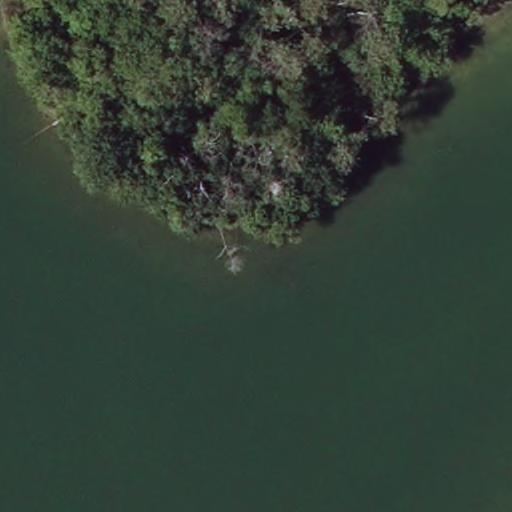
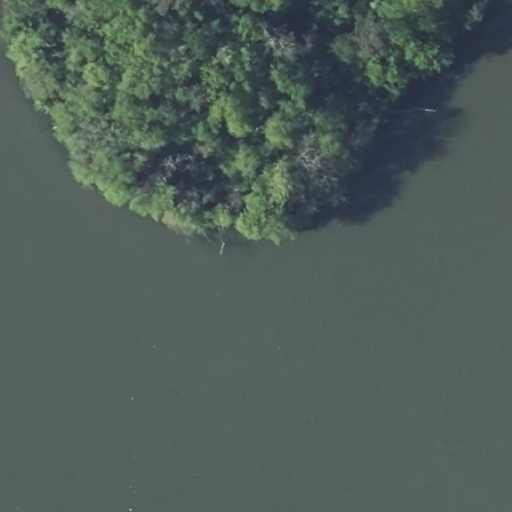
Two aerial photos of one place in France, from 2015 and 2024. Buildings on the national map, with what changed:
[]

